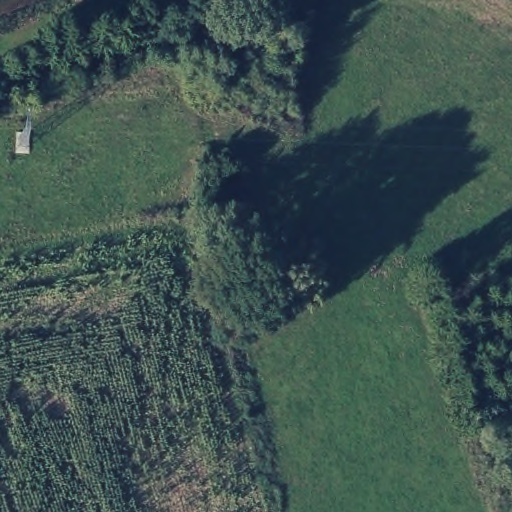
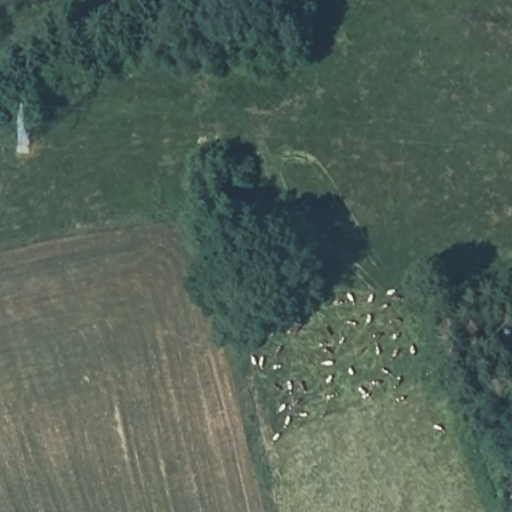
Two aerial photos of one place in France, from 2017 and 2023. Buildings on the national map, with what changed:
[]

